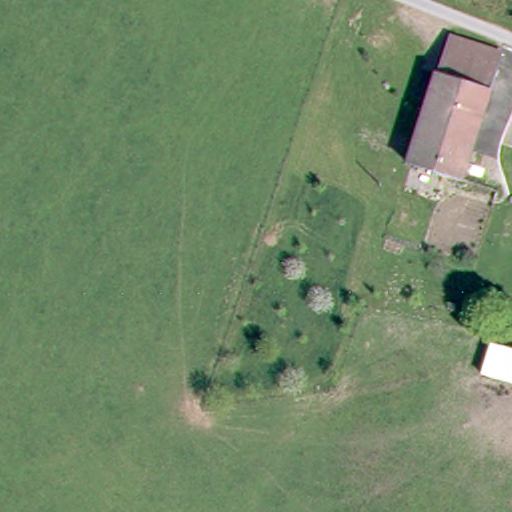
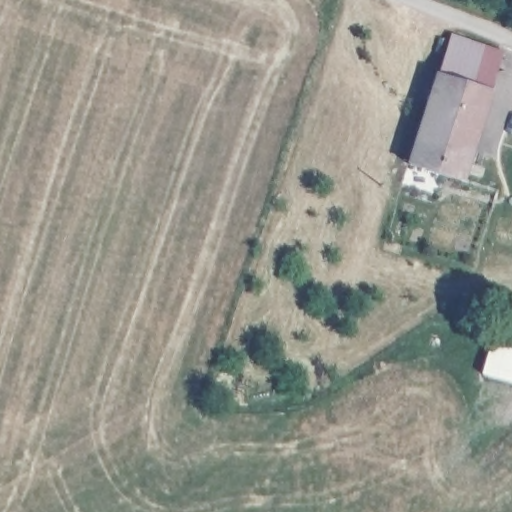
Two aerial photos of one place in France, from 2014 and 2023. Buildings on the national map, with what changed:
unchanged [(449,33),(500,51),(458,175),(405,158),(449,33)]

